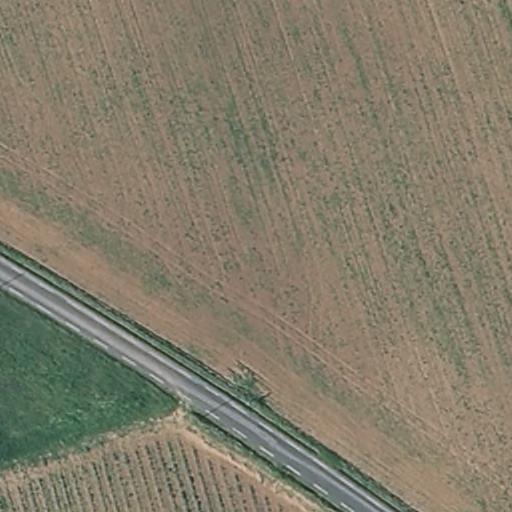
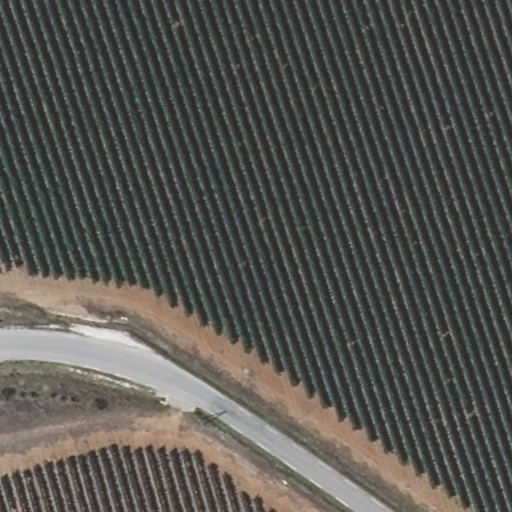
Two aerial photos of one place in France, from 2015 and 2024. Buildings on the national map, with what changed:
[]

